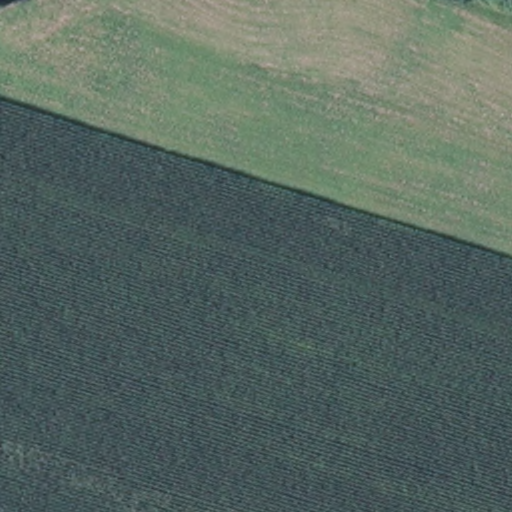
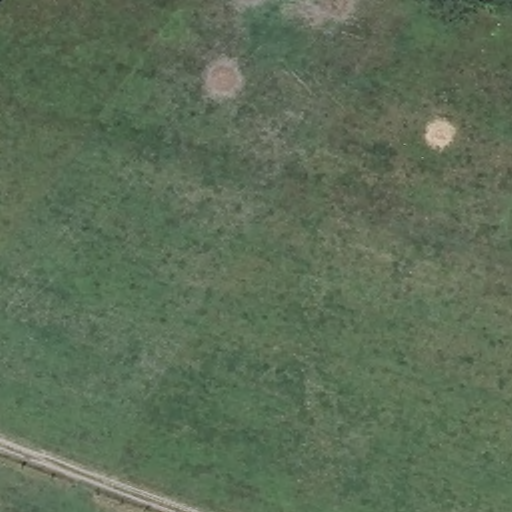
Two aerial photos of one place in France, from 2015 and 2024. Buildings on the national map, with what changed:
[]

